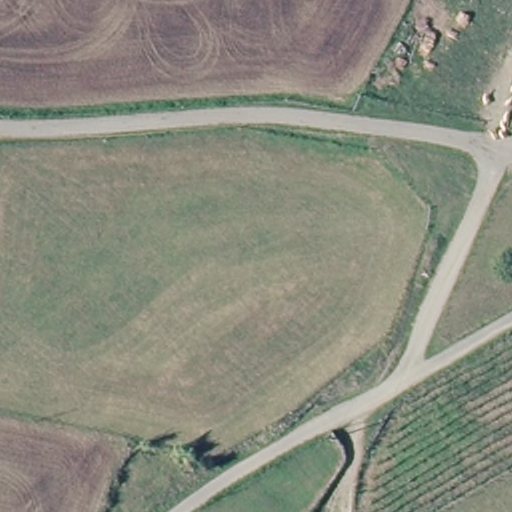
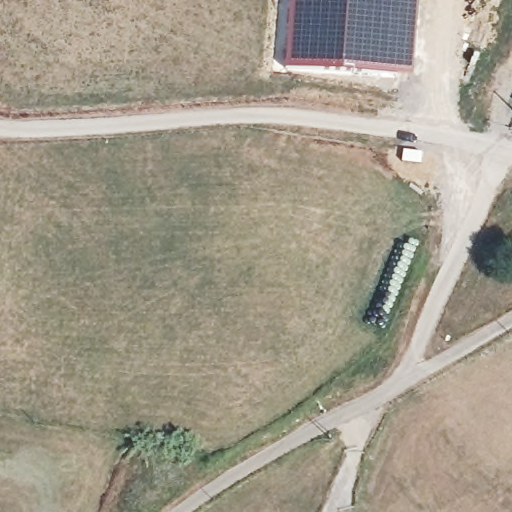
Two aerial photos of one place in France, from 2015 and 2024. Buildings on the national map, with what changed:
new [(285,58),(288,0),(417,0),(412,75),(328,71),(284,65),(285,58)]

